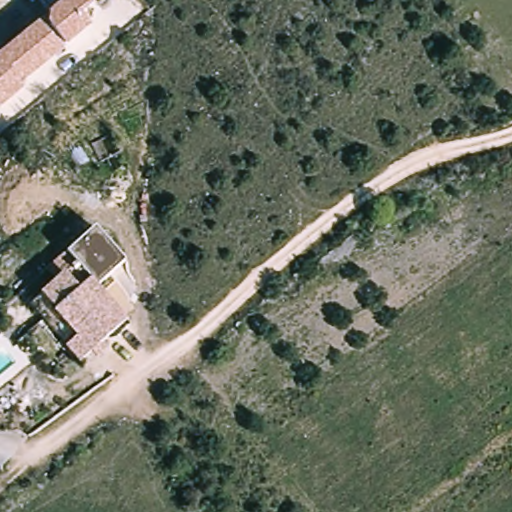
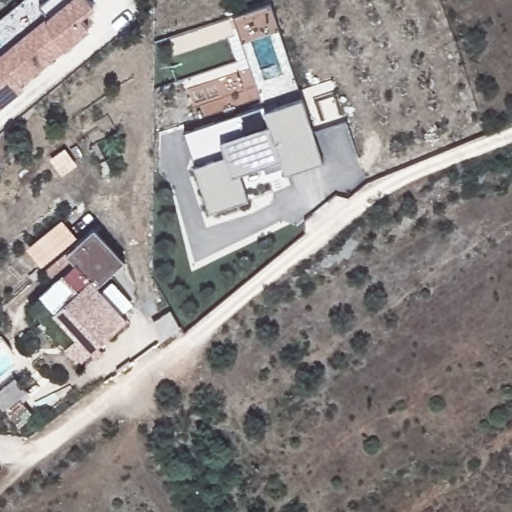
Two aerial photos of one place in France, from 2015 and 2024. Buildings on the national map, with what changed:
unchanged [(93,4),(80,17),(88,28),(64,47),(20,84),(24,88),(0,107),(0,53),(45,13),(38,6),(32,0),(90,0),(93,4)]
new [(261,106),(262,112),(301,99),(322,164),(284,177),(279,163),(238,176),(247,201),(208,214),(181,133),(261,106)]
unchanged [(79,258),(63,272),(53,265),(66,252),(94,228),(123,261),(100,284),(79,258)]
unchanged [(79,258),(129,318),(80,359),(30,299),(79,258)]

